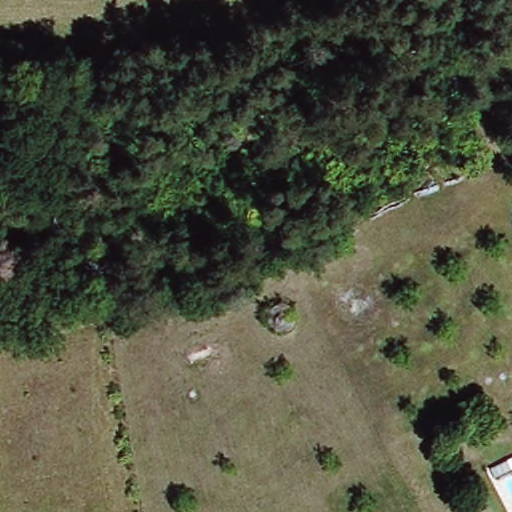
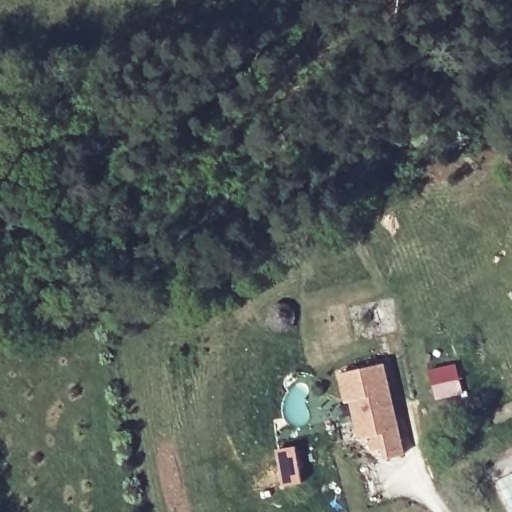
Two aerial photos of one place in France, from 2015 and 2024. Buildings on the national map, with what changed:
unchanged [(295,320),(289,323),(283,323),(274,317),(272,311),(272,306),(277,297),(283,294),(289,294),(297,299),(300,306),(299,316),(295,320)]
new [(451,365),(457,393),(434,399),(427,371),(451,365)]
new [(378,366),(399,456),(382,460),(380,450),(370,453),(367,438),(357,440),(347,402),(343,403),(336,375),(378,366)]

